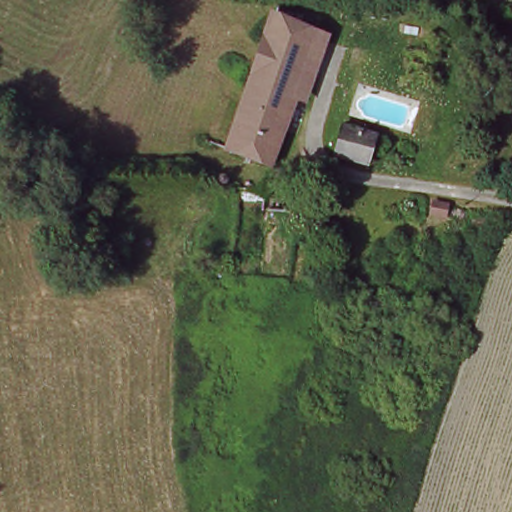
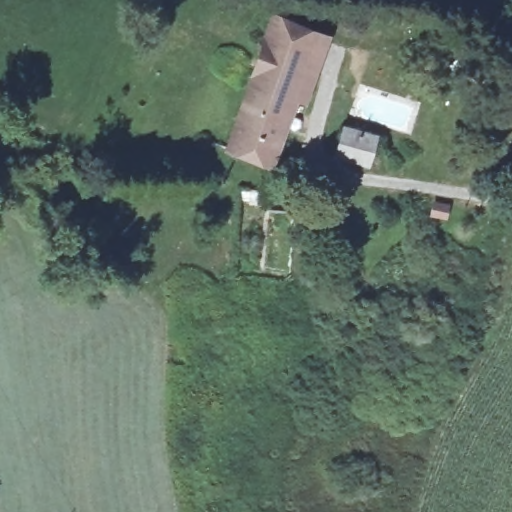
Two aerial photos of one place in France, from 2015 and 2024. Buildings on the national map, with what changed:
unchanged [(219,151),(274,25),(278,11),(310,25),(320,29),(331,34),(327,46),(316,42),(260,170),(219,151)]
unchanged [(340,151),(347,130),(377,144),(370,161),(360,162),(340,151)]

